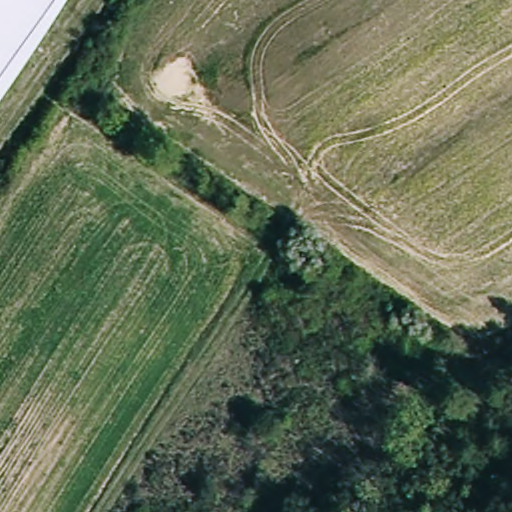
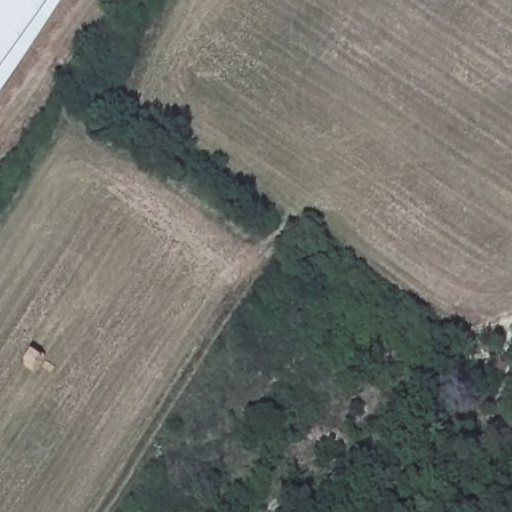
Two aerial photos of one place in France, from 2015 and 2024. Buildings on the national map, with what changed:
unchanged [(44,36),(0,102),(0,0),(67,0),(44,36)]

